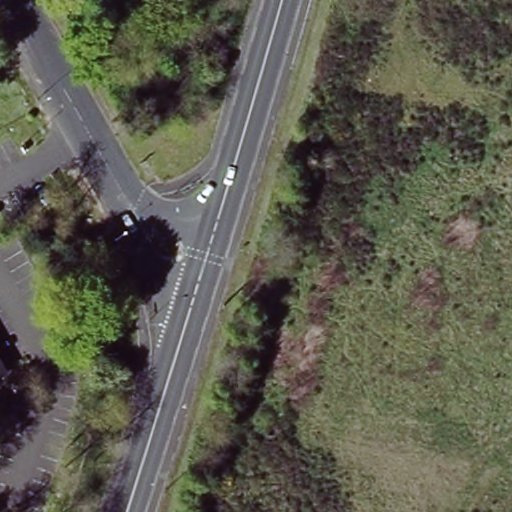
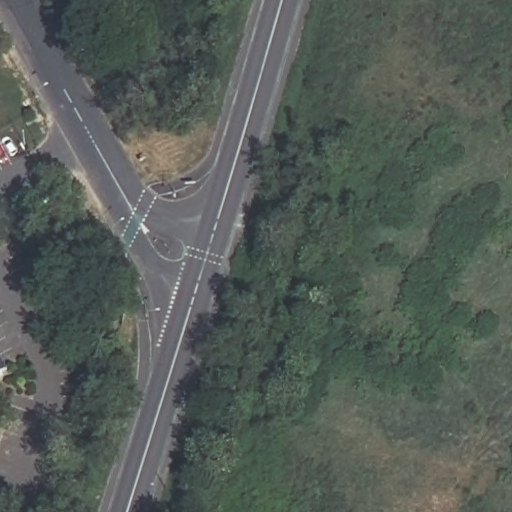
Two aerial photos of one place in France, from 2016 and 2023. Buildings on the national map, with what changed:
unchanged [(0,372),(0,367),(2,371),(0,372)]

